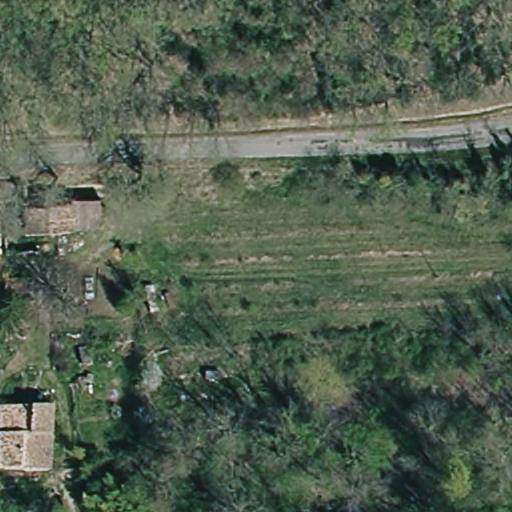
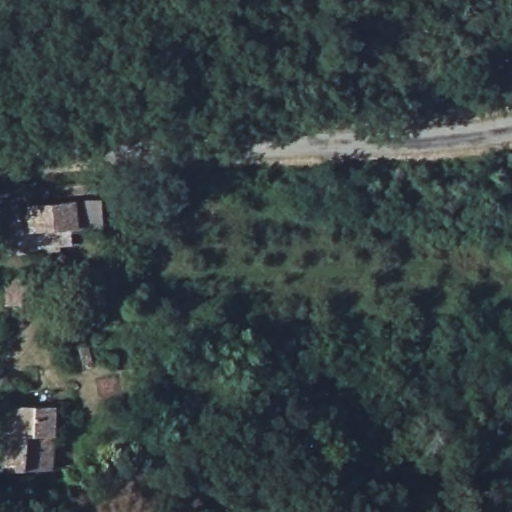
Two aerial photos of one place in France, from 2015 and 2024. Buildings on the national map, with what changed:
unchanged [(76,205),(100,203),(102,229),(78,231),(30,234),(27,210),(76,205)]
unchanged [(0,464),(0,402),(13,402),(55,401),(53,463),(0,464)]

